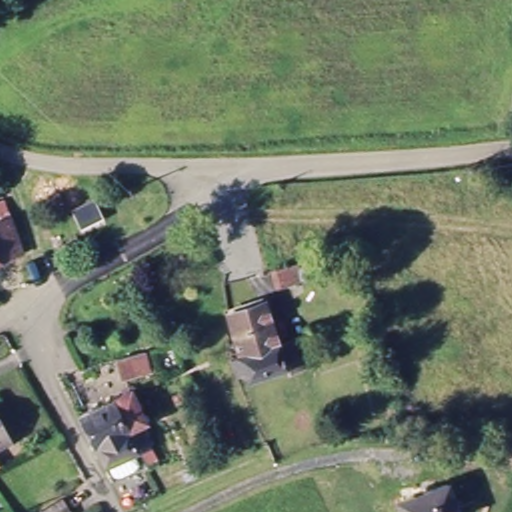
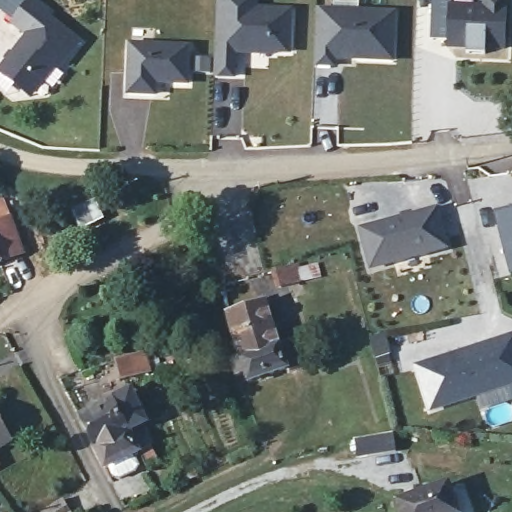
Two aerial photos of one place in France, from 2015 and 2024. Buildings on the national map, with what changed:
new [(10,24),(29,0),(34,0),(50,14),(48,17),(82,43),(59,71),(55,68),(31,101),(0,76),(0,66),(25,35),(10,24)]
new [(217,0),(258,0),(258,8),(292,10),(290,55),(275,55),(275,57),(236,55),(234,80),(213,80),(217,0)]
new [(450,0),(449,5),(482,6),(482,0),(507,0),(506,54),(485,53),(485,56),(467,56),(467,52),(447,50),(448,39),(431,40),(432,0),(450,0)]
new [(356,61),(355,56),(341,56),(341,61),(334,61),(333,69),(313,68),(317,9),(396,12),(394,64),(356,61)]
new [(129,44),(191,46),(189,86),(156,83),(156,99),(126,97),(129,44)]
new [(193,61),(212,62),(211,76),(192,75),(193,61)]
new [(0,265),(0,199),(3,198),(24,256),(4,264),(0,265)]
unchanged [(93,199),(103,217),(76,234),(66,217),(93,199)]
new [(494,214),(512,208),(512,274),(510,274),(494,214)]
new [(438,210),(448,249),(371,268),(361,229),(438,210)]
demolished [(0,219),(0,217),(1,219),(0,219)]
demolished [(0,245),(6,262),(0,265),(0,245)]
unchanged [(297,284),(281,289),(277,269),(291,264),(297,284)]
unchanged [(262,305),(274,351),(295,345),(303,372),(283,378),(282,374),(245,385),(241,370),(231,373),(228,357),(236,353),(226,317),(262,305)]
new [(415,367),(512,335),(512,387),(429,414),(415,367)]
new [(388,342),(393,360),(379,363),(375,344),(388,342)]
unchanged [(148,352),(152,376),(123,383),(116,362),(148,352)]
unchanged [(111,466),(107,468),(95,446),(81,416),(131,390),(156,444),(162,456),(145,465),(139,451),(135,453),(141,464),(138,470),(124,478),(116,476),(111,466)]
unchanged [(0,425),(9,441),(0,446),(0,425)]
unchanged [(396,503),(445,483),(456,512),(399,512),(396,503)]

